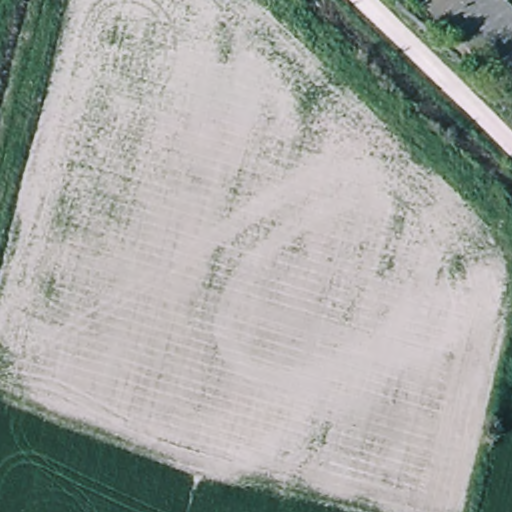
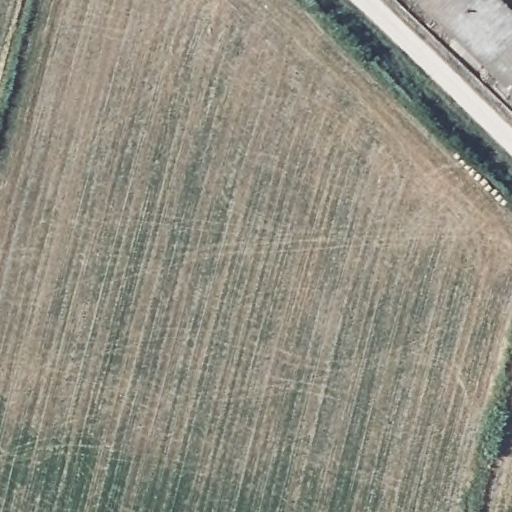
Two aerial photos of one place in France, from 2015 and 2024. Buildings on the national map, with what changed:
unchanged [(420,0),(508,0),(512,4),(512,90),(420,0)]

